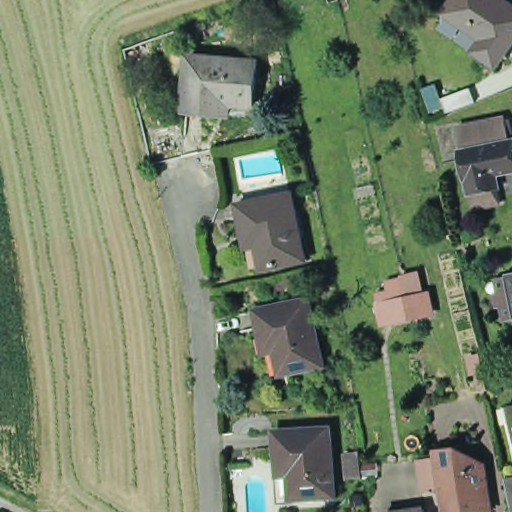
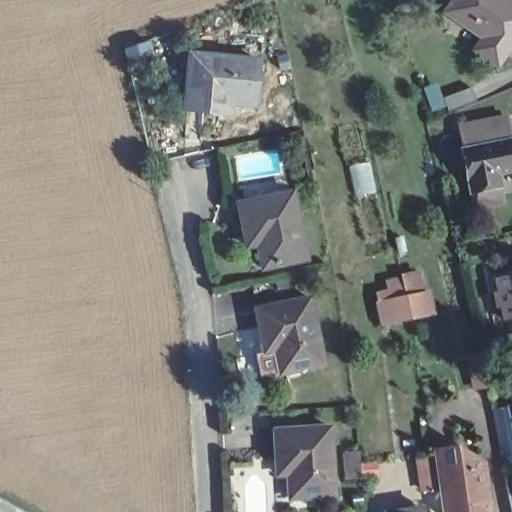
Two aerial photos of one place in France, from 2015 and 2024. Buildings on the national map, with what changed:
unchanged [(480,49),(487,37),(450,12),(458,0),(511,0),(512,1),(512,48),(501,64),(480,49)]
unchanged [(221,110),(192,107),(196,54),(265,59),(261,103),(237,101),(236,111),(221,110)]
unchanged [(512,141),(464,151),(459,130),(507,120),(512,141)]
unchanged [(473,194),(464,151),(512,141),(512,172),(499,175),(502,188),(505,202),(475,208),(473,194)]
unchanged [(251,228),(245,201),(300,188),(315,255),(272,265),(267,241),(255,244),(251,228)]
unchanged [(512,283),(512,293),(510,283),(512,283)]
unchanged [(427,313),(409,316),(395,320),(391,299),(394,298),(392,290),(403,287),(405,296),(423,292),(427,313)]
unchanged [(268,335),(261,307),(314,295),(329,361),(288,371),(282,347),(271,350),(268,335)]
unchanged [(279,458),(278,430),(334,426),(338,495),(294,497),(292,472),(280,473),(279,458)]
unchanged [(361,468),(362,476),(347,478),(344,452),(359,450),(361,468)]
unchanged [(445,453),(478,461),(482,512),(437,512),(434,493),(407,497),(403,462),(445,453)]

